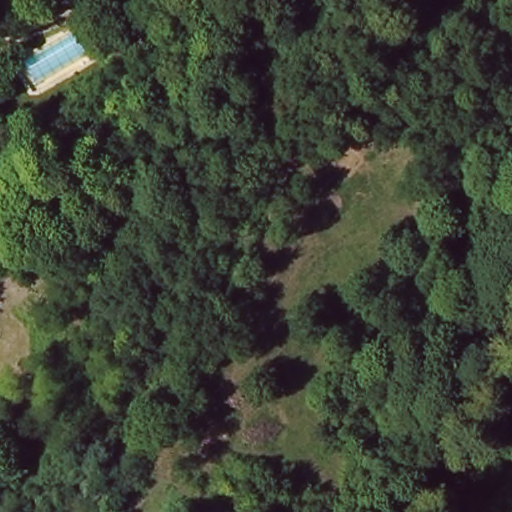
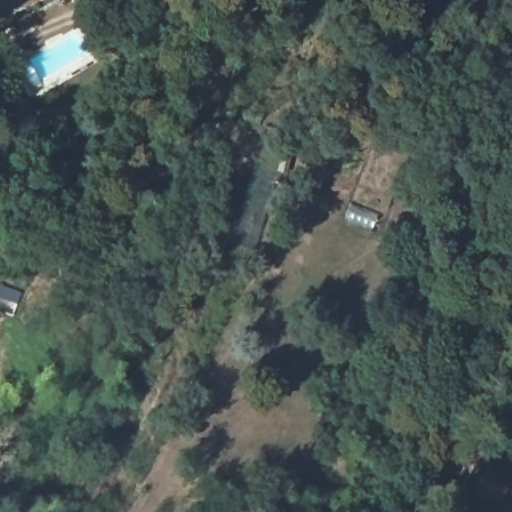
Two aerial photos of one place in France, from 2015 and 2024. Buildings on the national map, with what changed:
unchanged [(512,486),(512,495),(504,512),(498,512),(480,504),(493,478),(512,486)]

